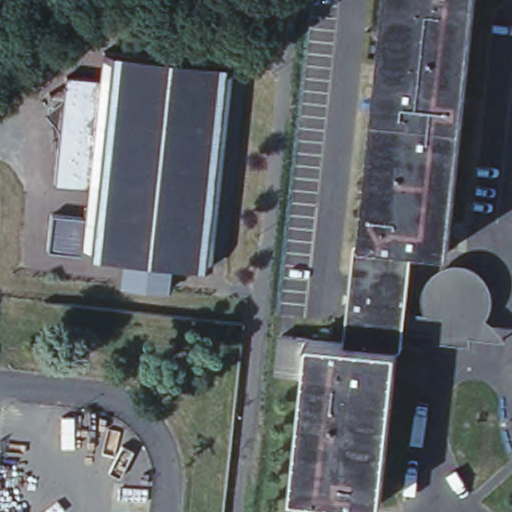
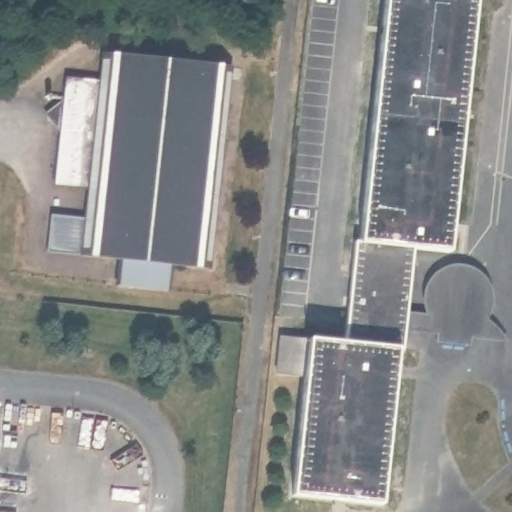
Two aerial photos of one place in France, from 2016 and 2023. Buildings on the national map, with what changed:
unchanged [(412,242),(409,279),(420,280),(417,307),(406,306),(401,343),(398,343),(378,512),(304,512),(286,509),(304,371),(276,366),(279,329),(310,332),(310,334),(345,338),(355,236),(360,237),(384,0),(474,0),(448,245),(412,242)]
unchanged [(42,179),(50,116),(45,115),(46,103),(50,104),(55,71),(87,75),(91,46),(99,47),(214,59),(192,263),(159,259),(155,295),(106,289),(110,254),(37,245),(40,205),(72,209),(72,199),(75,200),(77,183),(42,179)]
unchanged [(221,60),(199,264),(192,263),(214,59),(221,60)]
unchanged [(407,313),(425,314),(422,301),(426,288),(427,285),(428,281),(430,277),(432,274),(435,271),(438,269),(441,266),(445,264),(448,263),(452,262),(456,261),(460,261),(464,262),(468,263),(471,264),(475,266),(477,269),(480,271),(483,274),(485,278),(487,281),(488,285),(489,289),(489,293),(489,297),(488,301),(490,307),(488,315),(484,321),(500,343),(469,340),(467,349),(434,345),(435,337),(405,334),(407,313)]

